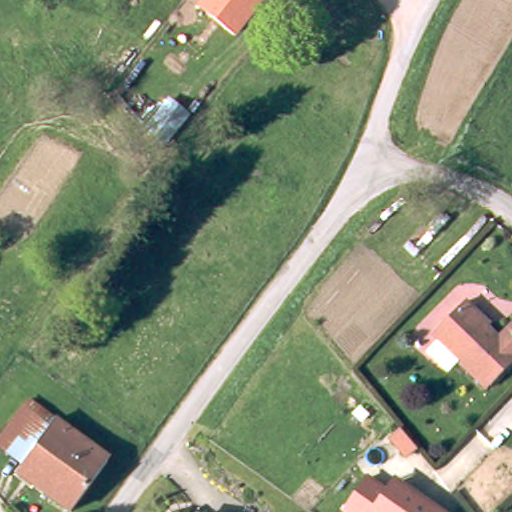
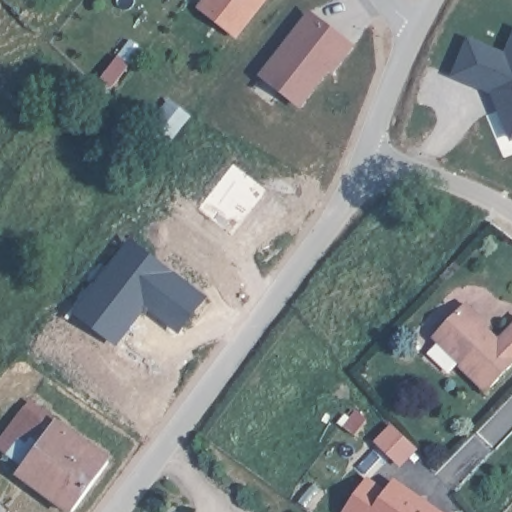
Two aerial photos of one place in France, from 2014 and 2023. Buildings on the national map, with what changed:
unchanged [(195,7),(201,0),(267,0),(237,38),(195,7)]
new [(355,44),(332,74),(327,74),(302,108),(260,76),(309,10),(355,44)]
new [(450,77),(467,37),(505,52),(512,33),(512,140),(510,141),(490,93),(450,77)]
new [(132,245),(202,301),(178,332),(140,302),(127,317),(128,327),(115,343),(78,314),(132,245)]
unchanged [(470,305),(490,322),(485,327),(504,345),(512,336),(512,371),(492,393),(465,368),(467,366),(440,338),(470,305)]
unchanged [(25,462),(0,446),(28,407),(53,423),(25,462)]
new [(418,449),(400,468),(372,441),(390,422),(418,449)]
unchanged [(107,460),(73,510),(19,472),(25,462),(53,423),(107,460)]
unchanged [(388,489),(393,481),(444,512),(341,512),(365,474),(388,489)]

